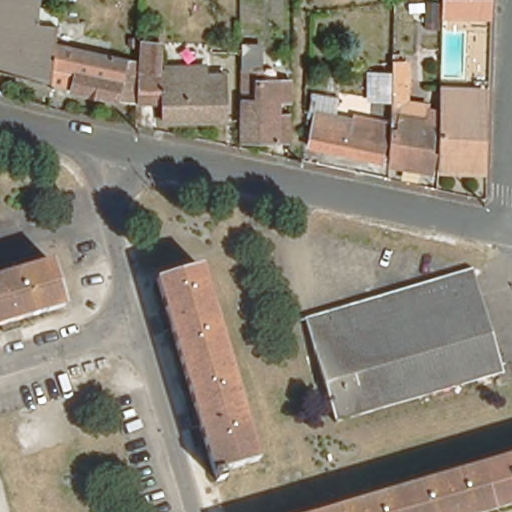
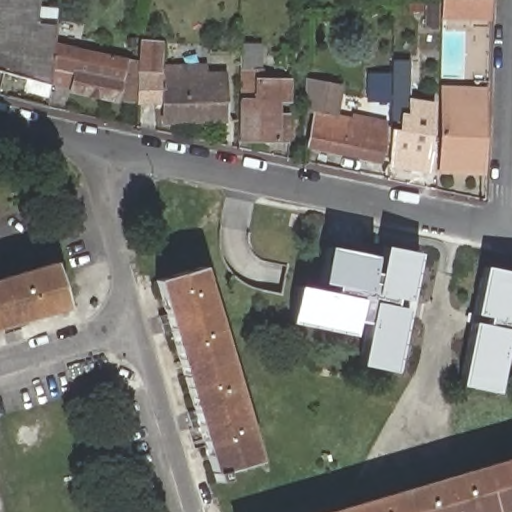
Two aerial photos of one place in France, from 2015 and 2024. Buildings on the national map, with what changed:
unchanged [(0,0),(38,0),(36,21),(55,22),(50,82),(0,66),(0,0)]
unchanged [(441,24),(442,4),(486,0),(491,0),(490,20),(441,24)]
unchanged [(424,10),(438,11),(435,37),(423,36),(424,10)]
unchanged [(306,21),(313,21),(313,30),(307,30),(306,21)]
unchanged [(116,98),(114,97),(69,87),(65,86),(51,83),(52,75),(54,62),(55,44),(57,23),(72,26),(69,46),(134,59),(134,76),(134,77),(134,93),(134,97),(134,102),(116,98)]
unchanged [(140,77),(141,60),(140,60),(140,40),(156,40),(157,68),(161,69),(161,62),(205,60),(205,70),(221,69),(222,115),(162,117),(162,97),(136,97),(136,77),(140,77)]
unchanged [(239,100),(241,100),(240,55),(258,55),(258,80),(275,80),(285,80),(286,97),(275,97),(276,115),(288,115),(288,141),(239,141),(239,100)]
unchanged [(387,70),(387,60),(401,60),(401,70),(402,101),(428,105),(426,110),(435,111),(427,151),(432,152),(428,171),(422,170),(387,164),(387,135),(387,70)]
unchanged [(369,77),(377,77),(385,77),(385,102),(370,102),(369,77)]
unchanged [(482,94),(481,109),(477,174),(437,172),(440,92),(463,93),(482,94)]
unchanged [(308,96),(335,100),(332,115),(351,120),(351,125),(387,135),(378,165),(307,146),(313,124),(303,121),(308,96)]
new [(290,322),(295,287),(335,295),(337,286),(316,282),(326,247),(372,257),(370,271),(375,272),(381,245),(419,253),(409,301),(396,298),(395,306),(407,308),(395,372),(357,365),(365,323),(354,321),(352,335),(290,322)]
unchanged [(0,271),(50,256),(65,308),(0,327),(0,271)]
unchanged [(221,472),(225,481),(215,485),(156,282),(210,267),(202,270),(260,462),(221,472)]
new [(459,386),(471,322),(485,325),(486,317),(473,315),(482,267),(512,273),(512,368),(505,367),(508,352),(502,350),(495,393),(459,386)]
demolished [(346,422),(337,424),(306,318),(471,268),(481,300),(506,375),(346,422)]
unchanged [(492,512),(336,512),(512,459),(512,506),(492,512)]

